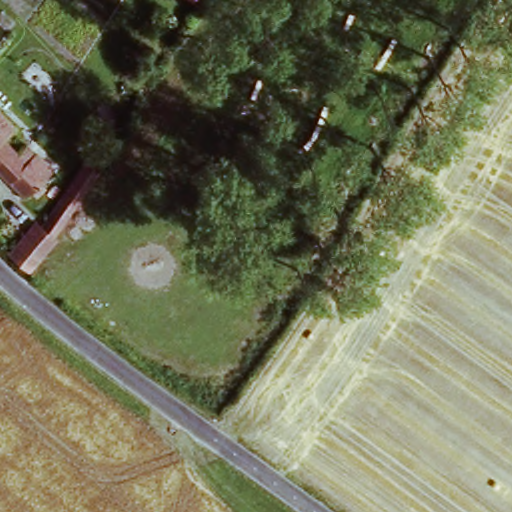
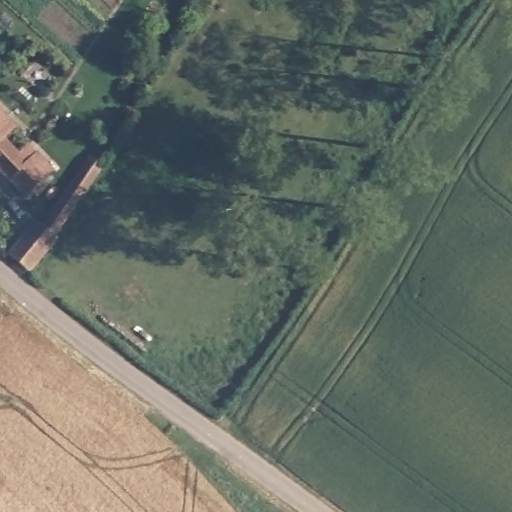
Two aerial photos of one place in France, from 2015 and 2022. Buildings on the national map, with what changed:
unchanged [(10,120),(0,130),(0,110),(10,120)]
unchanged [(17,184),(15,186),(0,173),(0,138),(5,143),(17,129),(45,156),(55,165),(27,194),(17,184)]
unchanged [(86,152),(103,161),(33,277),(10,250),(33,216),(40,217),(86,152)]

